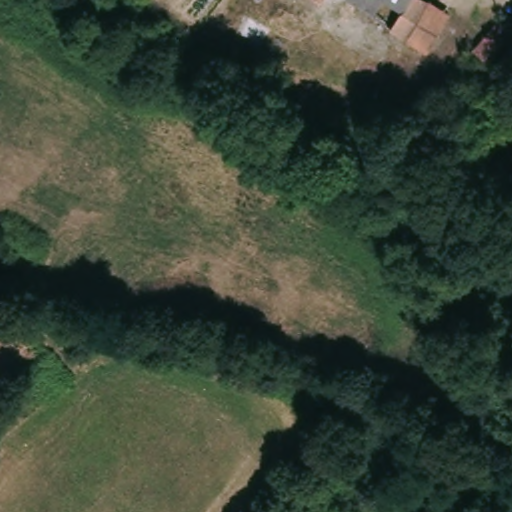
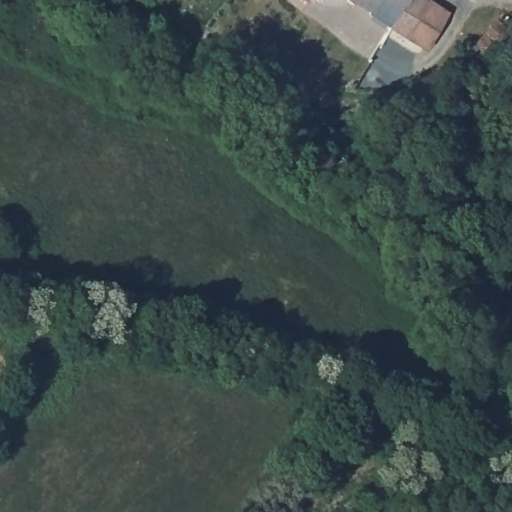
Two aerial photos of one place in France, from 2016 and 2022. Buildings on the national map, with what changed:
unchanged [(323,4),(319,0),(325,0),(323,4)]
unchanged [(371,11),(356,0),(377,0),(371,11)]
unchanged [(392,0),(409,0),(404,9),(392,0)]
unchanged [(412,39),(411,39),(392,30),(404,9),(409,0),(434,0),(451,10),(429,48),(412,39)]

